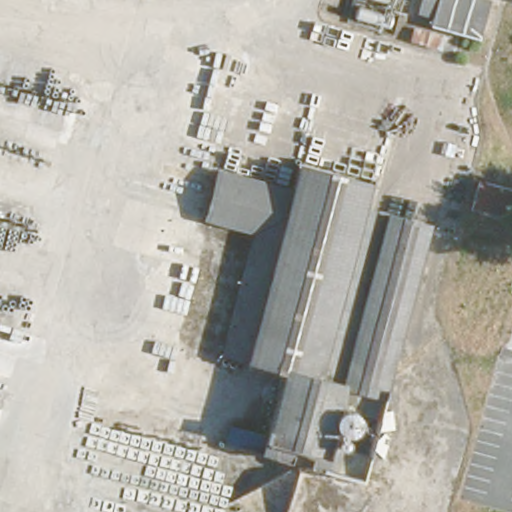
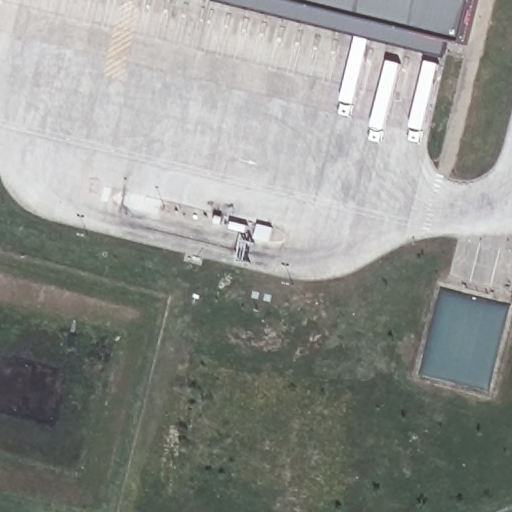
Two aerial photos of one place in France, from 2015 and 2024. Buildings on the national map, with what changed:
new [(463,43),(290,0),(474,0),(463,43)]
demolished [(432,20),(433,15),(421,10),(424,0),(490,0),(480,34),(432,20)]
demolished [(246,270),(255,230),(209,214),(221,166),(293,183),(301,155),(344,166),(304,296),(246,270)]
demolished [(352,373),(335,443),(275,429),(293,358),(285,356),(304,296),(344,166),(371,172),(366,201),(429,217),(392,380),(352,373)]
demolished [(480,207),(489,178),(507,183),(498,212),(480,207)]
demolished [(230,341),(246,270),(304,296),(285,356),(230,341)]

